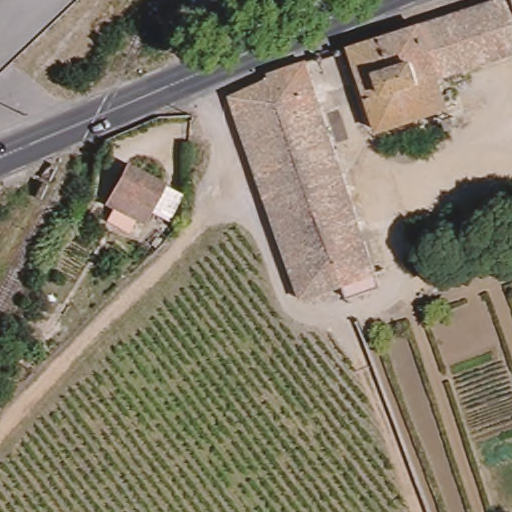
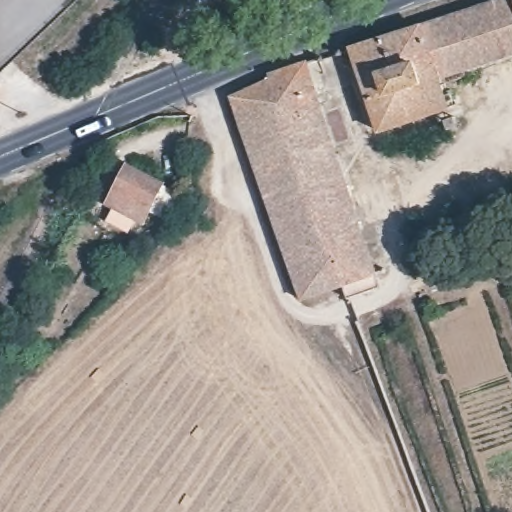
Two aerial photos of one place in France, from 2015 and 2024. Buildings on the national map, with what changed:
unchanged [(439,80),(443,94),(450,92),(455,107),(380,133),(356,64),(350,49),(447,18),(503,0),(512,0),(512,57),(468,70),(439,80)]
unchanged [(374,258),(380,276),(383,289),(352,299),(347,286),(307,299),(278,217),(256,152),(237,98),(275,79),(273,75),(311,63),(324,105),(335,139),(354,194),(374,258)]
unchanged [(445,121),(455,119),(458,127),(448,130),(445,121)]
unchanged [(178,198),(165,225),(160,224),(152,242),(137,234),(131,240),(104,224),(111,211),(103,205),(124,164),(178,198)]

